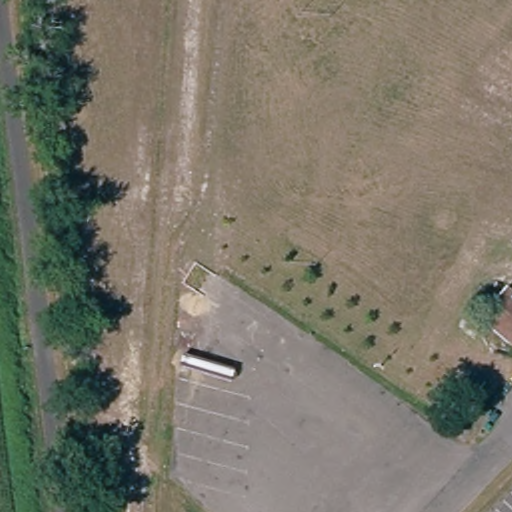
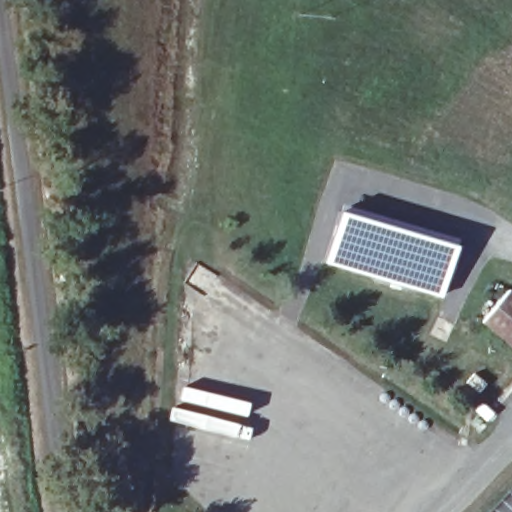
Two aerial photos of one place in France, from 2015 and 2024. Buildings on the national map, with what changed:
new [(341,204),(457,237),(440,296),(325,262),(341,204)]
unchanged [(479,316),(505,286),(512,292),(512,345),(479,316)]

